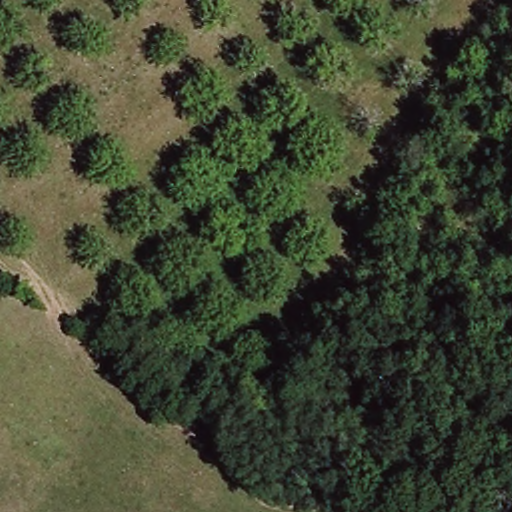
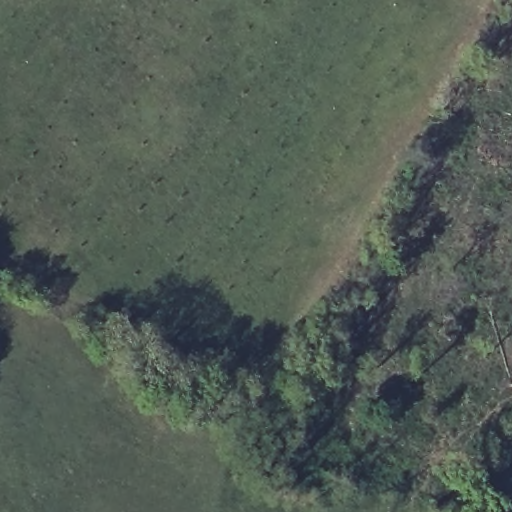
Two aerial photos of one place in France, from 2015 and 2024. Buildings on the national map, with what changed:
[]

